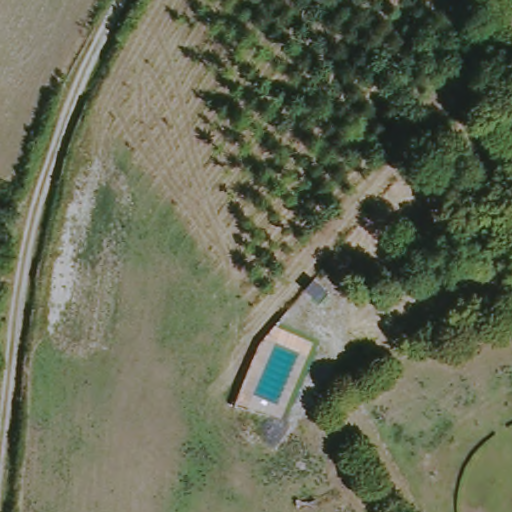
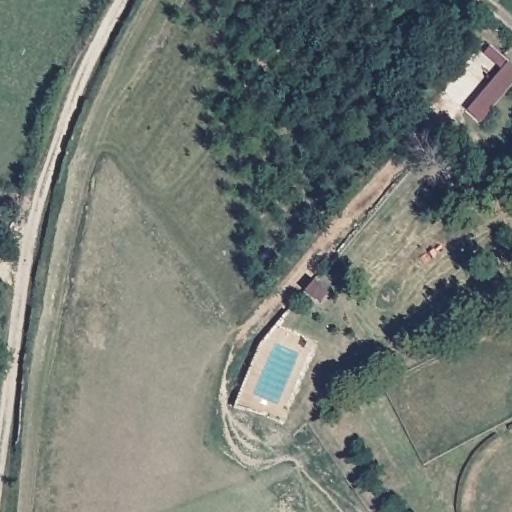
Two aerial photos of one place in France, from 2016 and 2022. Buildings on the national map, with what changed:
new [(470,109),(503,70),(486,53),(492,47),(512,67),(512,85),(483,120),(470,109)]

